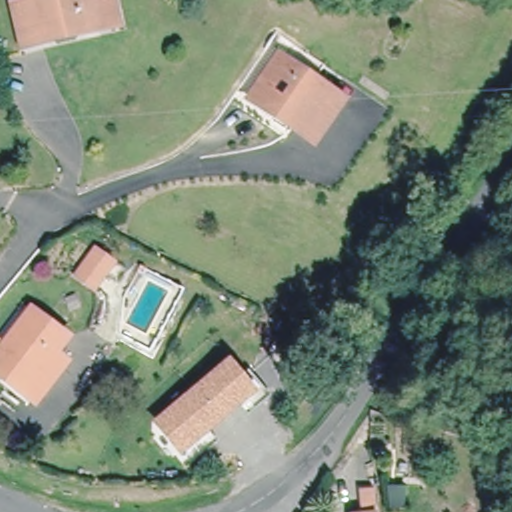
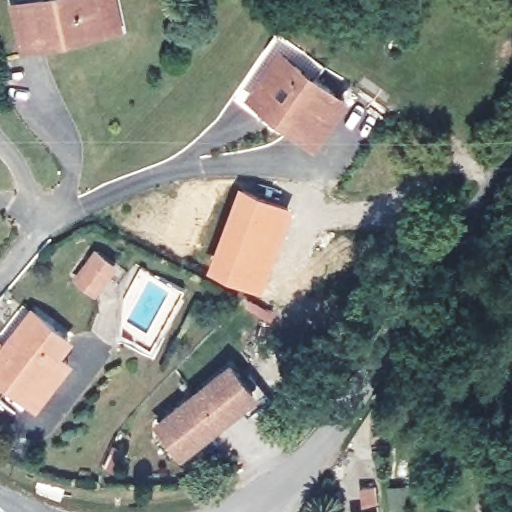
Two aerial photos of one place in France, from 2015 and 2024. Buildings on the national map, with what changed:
unchanged [(43,40),(25,45),(16,5),(38,0),(114,0),(120,24),(100,29),(100,30),(44,42),(43,40)]
unchanged [(306,136),(251,98),(281,55),(336,93),(346,100),(316,143),(306,136)]
new [(239,184),(293,206),(261,288),(206,271),(239,184)]
unchanged [(96,289),(79,276),(96,253),(113,265),(96,289)]
unchanged [(21,390),(0,374),(0,340),(1,341),(28,305),(64,333),(52,348),(64,357),(32,399),(21,390)]
unchanged [(178,462),(152,437),(161,428),(217,370),(243,396),(178,462)]
unchanged [(353,511),(365,510),(362,484),(375,483),(378,512),(353,512),(353,511)]

